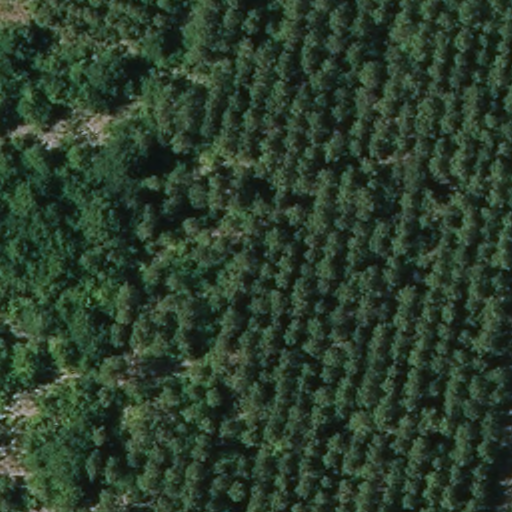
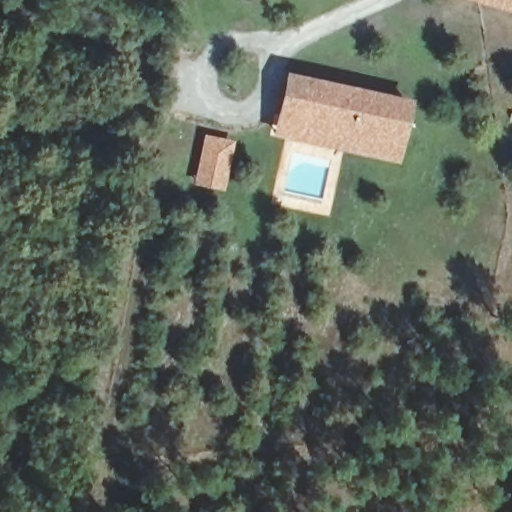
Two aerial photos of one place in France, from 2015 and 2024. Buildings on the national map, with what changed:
new [(512,0),(512,11),(472,0),(512,0)]
new [(411,100),(396,163),(269,136),(284,71),(411,100)]
new [(203,134),(234,141),(223,191),(193,184),(203,134)]

